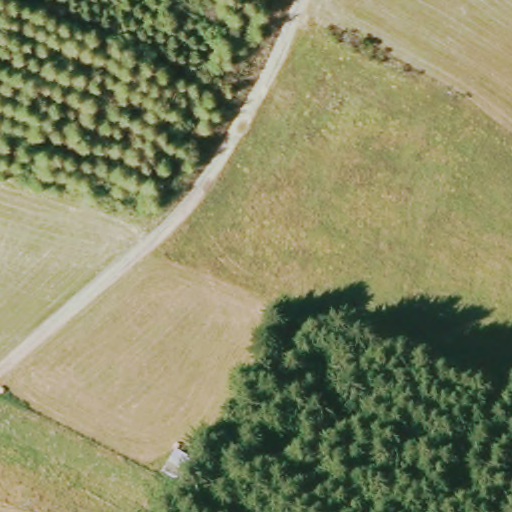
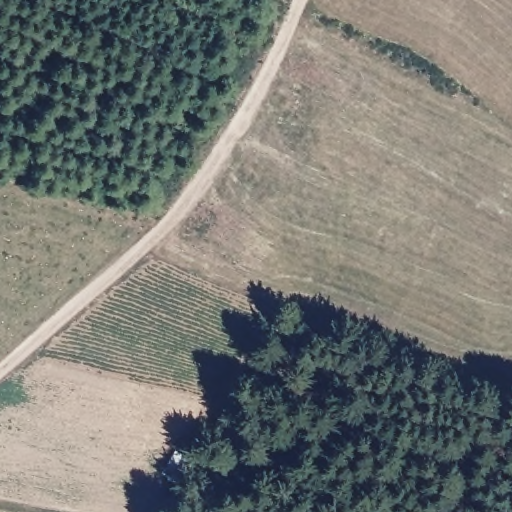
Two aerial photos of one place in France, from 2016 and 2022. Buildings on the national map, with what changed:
unchanged [(181,451),(196,462),(183,477),(186,479),(183,486),(164,473),(181,451)]

